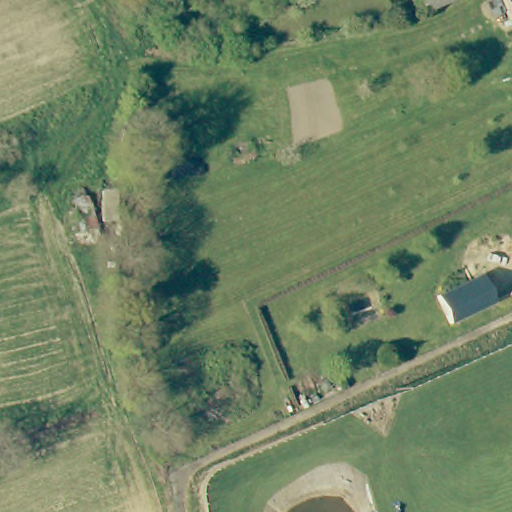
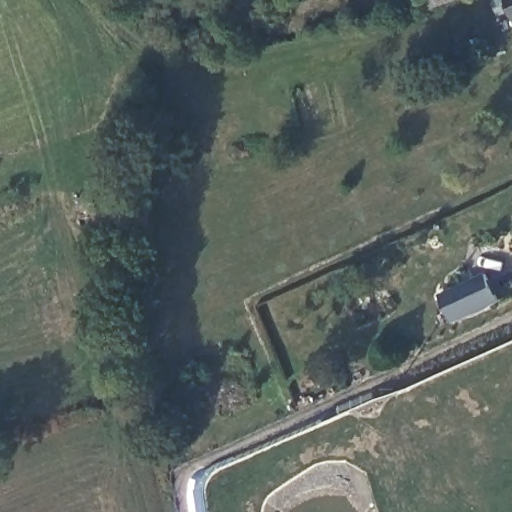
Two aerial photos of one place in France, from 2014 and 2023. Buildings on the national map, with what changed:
unchanged [(474,5),(429,23),(419,0),(472,0),(474,5)]
unchanged [(501,0),(512,0),(512,23),(501,0)]
unchanged [(457,321),(445,294),(489,272),(502,300),(457,321)]

